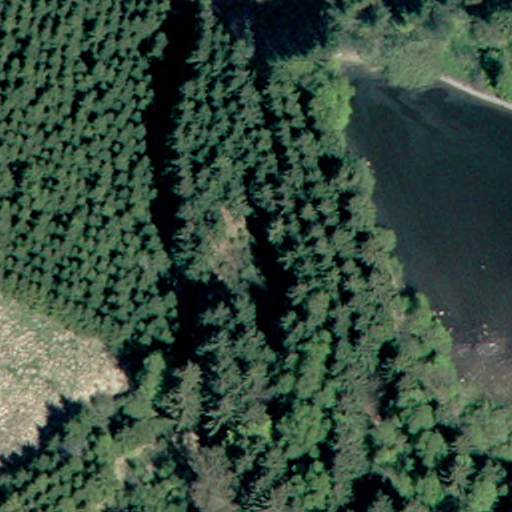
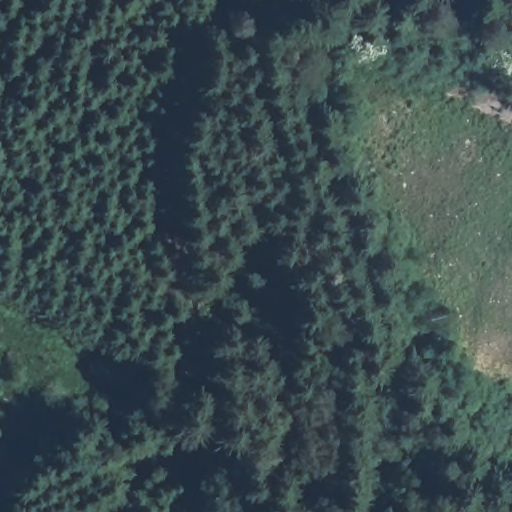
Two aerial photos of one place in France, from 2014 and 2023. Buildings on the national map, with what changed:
unchanged [(239,0),(243,13),(221,20),(217,6),(237,0),(239,0)]

